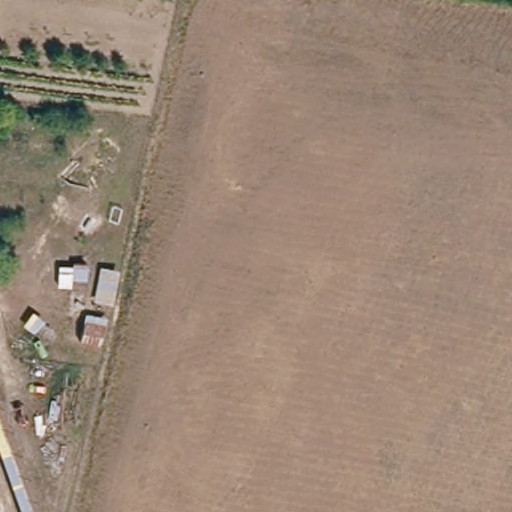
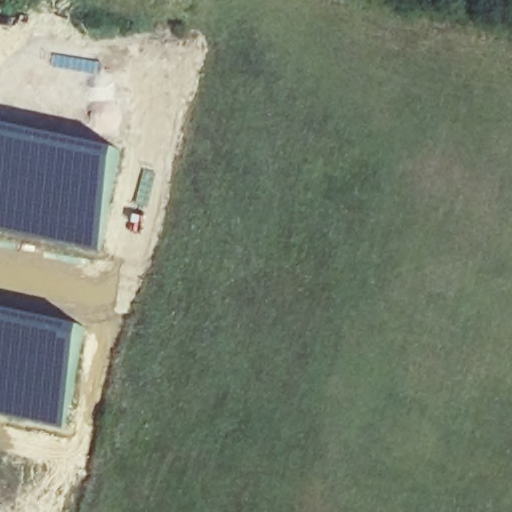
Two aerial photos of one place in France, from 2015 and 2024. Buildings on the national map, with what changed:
new [(124,149),(99,256),(33,239),(0,232),(0,124),(124,149)]
new [(84,326),(61,429),(0,415),(0,307),(84,326)]

